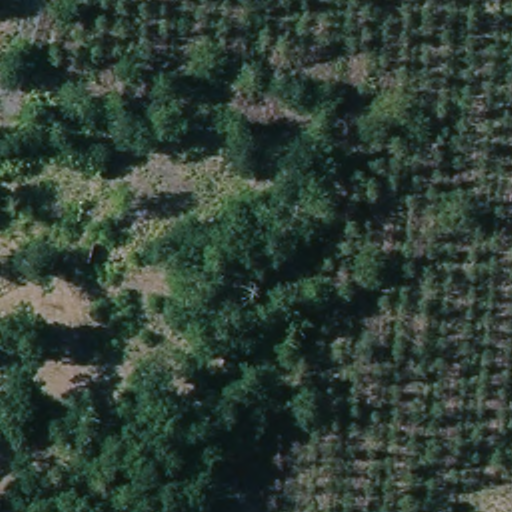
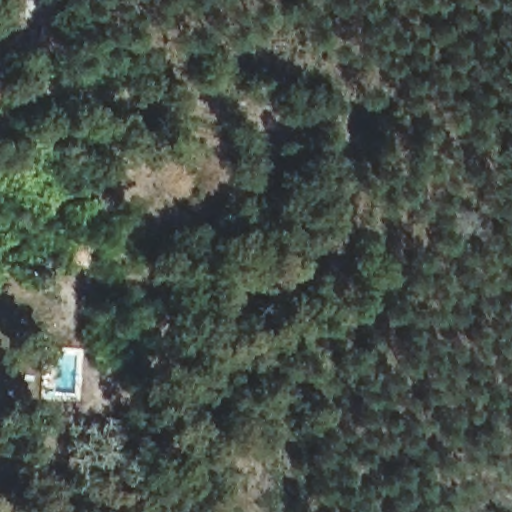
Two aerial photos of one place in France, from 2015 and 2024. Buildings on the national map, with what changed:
unchanged [(247,295),(246,307),(239,304),(233,314),(224,312),(227,291),(247,295)]

